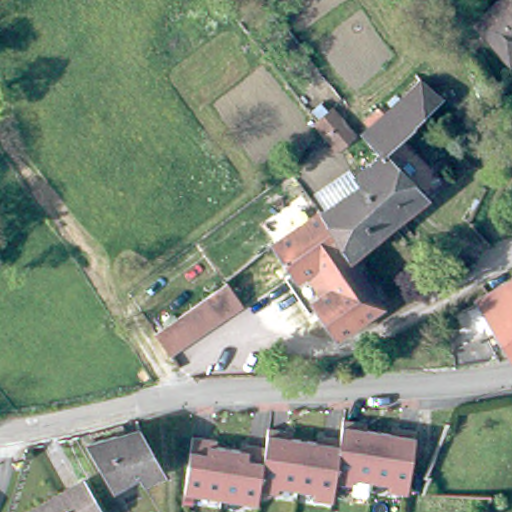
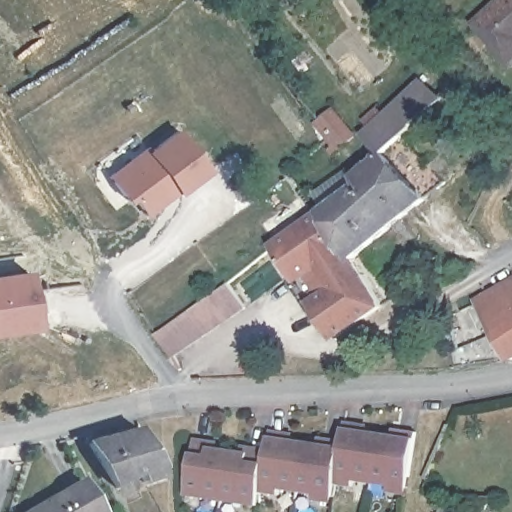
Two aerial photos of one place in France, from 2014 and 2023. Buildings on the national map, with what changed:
unchanged [(505,0),(512,0),(512,55),(483,22),(505,0)]
unchanged [(353,254),(320,206),(361,179),(356,171),(380,147),(362,129),(421,73),(441,94),(403,130),(447,177),(362,246),(353,254)]
unchanged [(356,131),(334,150),(329,144),(333,140),(328,132),(316,117),(332,102),(356,131)]
new [(148,149),(150,152),(179,131),(209,171),(179,192),(177,189),(163,199),(165,201),(146,215),(134,196),(128,201),(110,176),(148,149)]
unchanged [(285,273),(291,268),(272,240),(320,206),(353,254),(383,300),(335,332),(316,304),(310,308),(285,273)]
new [(38,325),(0,329),(0,277),(29,273),(38,325)]
unchanged [(477,300),(512,280),(512,359),(477,300)]
unchanged [(170,356),(154,332),(227,283),(243,306),(170,356)]
unchanged [(167,470),(159,472),(142,477),(139,470),(116,483),(89,439),(118,430),(115,422),(124,420),(127,428),(141,424),(167,470)]
unchanged [(253,503),(191,495),(185,493),(187,481),(188,473),(194,437),(211,440),(218,441),(217,447),(223,448),(241,450),(242,445),(249,445),(267,448),(269,430),(287,432),(293,433),(292,439),(309,441),(318,443),(319,437),(325,438),(341,440),(344,421),(362,424),(368,425),(367,431),(374,432),(393,435),(394,429),(400,430),(413,431),(417,432),(411,477),(409,494),(403,493),(390,491),(391,485),(385,485),(354,480),(353,486),(340,485),(336,484),(333,502),(328,501),(319,500),(315,500),(316,493),(280,488),(279,495),(269,493),(266,492),(260,492),(259,503),(258,503),(253,503)]
unchanged [(29,512),(83,481),(101,512),(29,512)]

